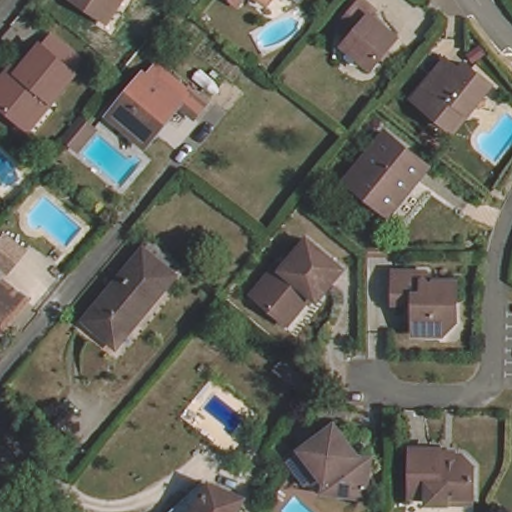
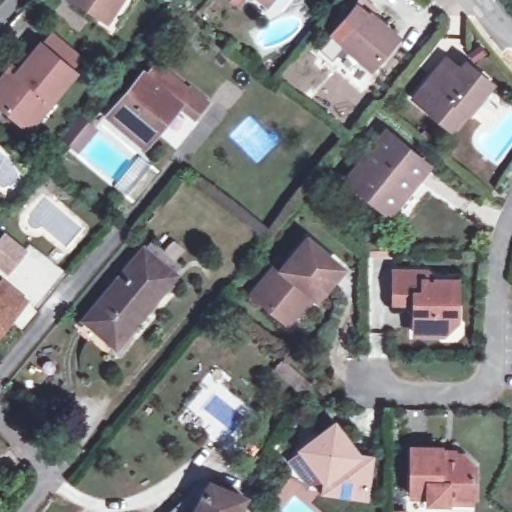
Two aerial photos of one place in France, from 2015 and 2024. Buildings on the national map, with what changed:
unchanged [(104,15),(80,0),(122,0),(110,19),(104,15)]
unchanged [(250,3),(246,0),(253,0),(250,3)]
unchanged [(265,10),(253,0),(273,0),(265,10)]
unchanged [(294,6),(285,0),(299,0),(294,6)]
unchanged [(369,18),(395,39),(370,70),(343,48),(351,38),(339,29),(360,3),(372,13),(369,18)]
unchanged [(0,104),(0,81),(13,66),(19,71),(40,44),(43,47),(52,36),(76,57),(68,67),(74,72),(52,99),(29,127),(22,122),(0,104)]
unchanged [(482,70),(480,72),(497,85),(474,114),(470,111),(456,127),(419,97),(449,61),(463,72),(472,61),(482,70)]
unchanged [(201,108),(189,123),(188,123),(173,110),(160,125),(156,121),(137,144),(105,118),(137,80),(141,83),(152,70),(185,97),(186,95),(201,108)]
unchanged [(428,164),(389,212),(347,179),(388,132),(428,164)]
unchanged [(24,253),(8,272),(0,266),(0,243),(5,237),(24,253)]
unchanged [(285,267),(309,237),(345,267),(322,296),(315,292),(290,322),(255,293),(279,264),(285,267)]
unchanged [(137,317),(135,315),(113,343),(84,319),(142,248),(149,238),(179,263),(172,272),(172,273),(137,317)]
unchanged [(445,284),(445,303),(450,303),(450,327),(444,327),(434,336),(433,339),(409,339),(409,308),(389,308),(389,276),(420,276),(420,284),(445,284)]
unchanged [(5,286),(29,305),(17,319),(0,340),(0,285),(4,288),(5,286)]
unchanged [(283,357),(312,383),(306,392),(276,366),(283,357)]
unchanged [(355,451),(367,453),(362,494),(320,488),(320,479),(295,449),(328,422),(355,451)]
unchanged [(448,500),(428,500),(428,494),(412,493),(412,447),(441,447),(442,453),(466,453),(475,465),(475,493),(475,501),(448,500)]
unchanged [(250,503),(245,512),(178,512),(206,485),(250,503)]

